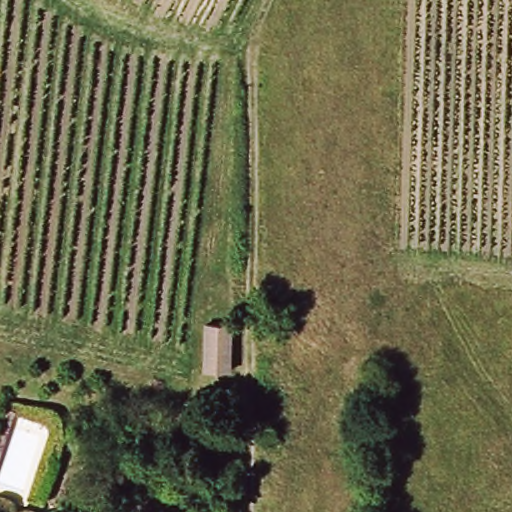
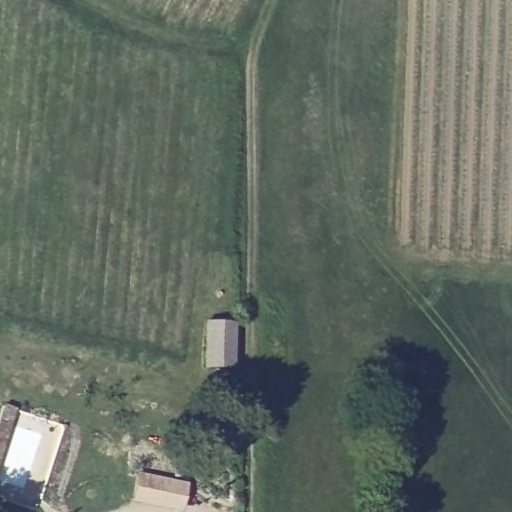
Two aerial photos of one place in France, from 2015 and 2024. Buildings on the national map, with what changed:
unchanged [(231,367),(208,368),(207,321),(231,321),(231,367)]
new [(141,473),(189,483),(183,512),(180,512),(130,502),(135,477),(140,478),(141,473)]

